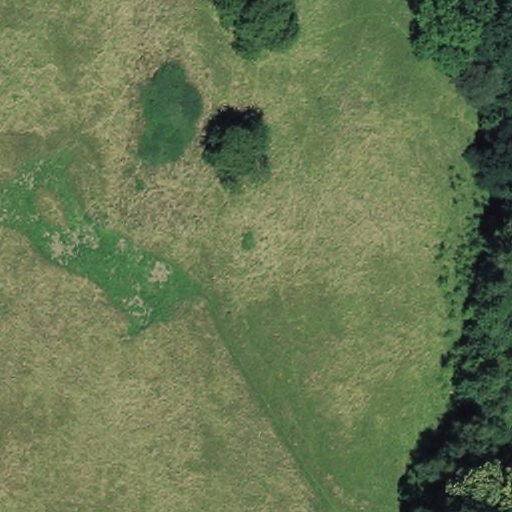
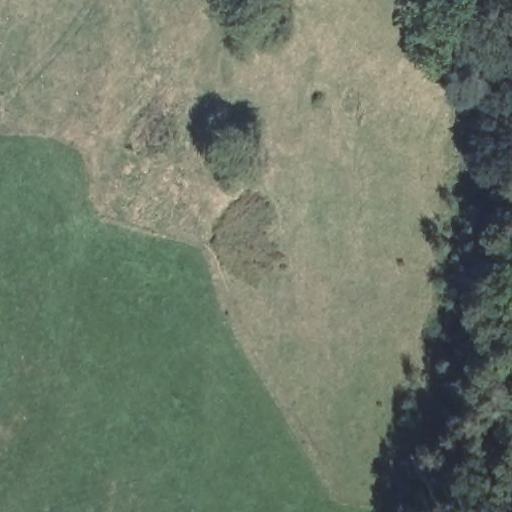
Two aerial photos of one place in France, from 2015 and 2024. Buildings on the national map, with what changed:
[]

